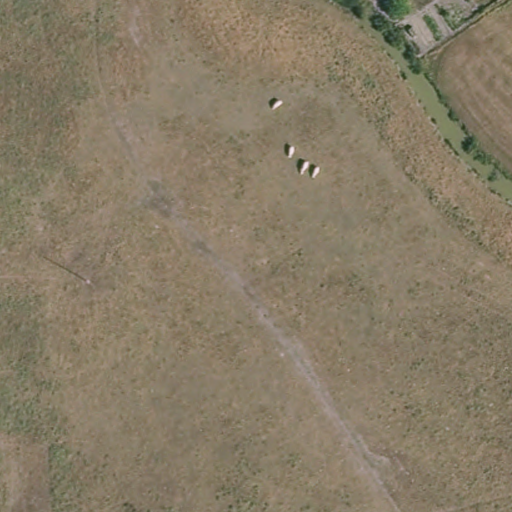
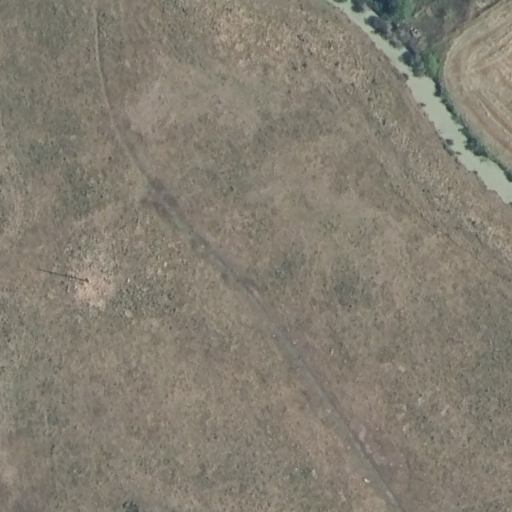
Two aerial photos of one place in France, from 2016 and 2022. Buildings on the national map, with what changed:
[]

